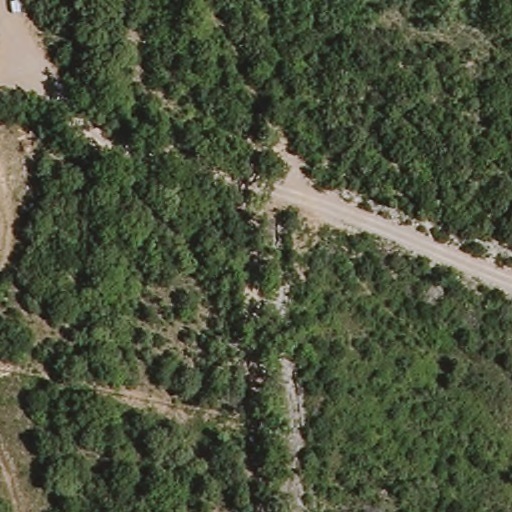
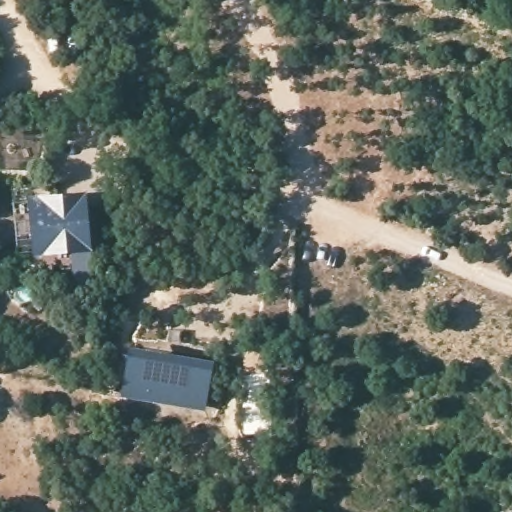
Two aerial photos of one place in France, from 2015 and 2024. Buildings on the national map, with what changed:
new [(93,251),(35,256),(30,197),(87,191),(93,251)]
new [(119,351),(126,353),(128,343),(165,349),(214,361),(205,411),(111,395),(111,393),(107,391),(119,351)]

